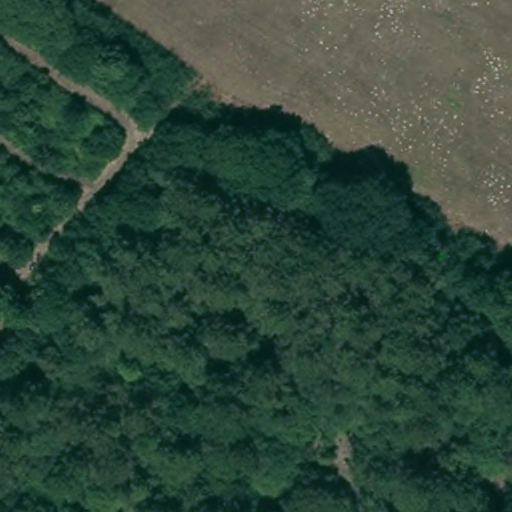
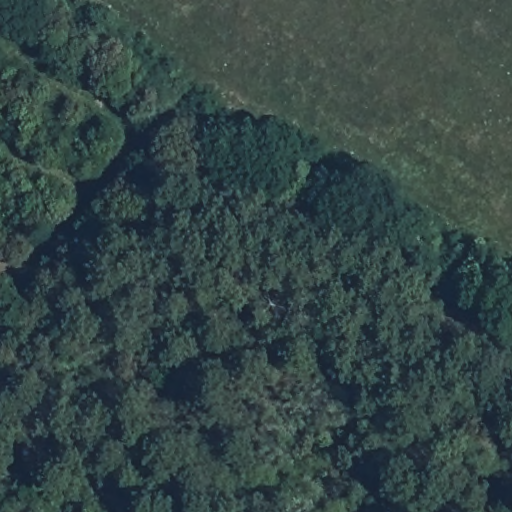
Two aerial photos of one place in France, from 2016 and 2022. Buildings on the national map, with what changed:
[]

